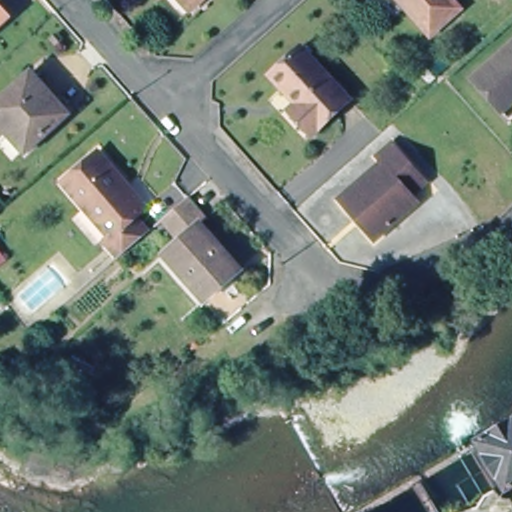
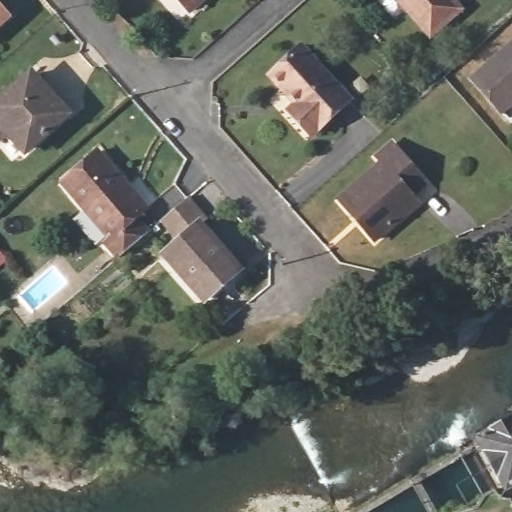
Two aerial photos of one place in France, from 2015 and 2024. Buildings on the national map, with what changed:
unchanged [(178,0),(203,0),(189,13),(178,0)]
unchanged [(398,0),(450,0),(461,13),(431,38),(398,0)]
unchanged [(0,29),(0,10),(9,20),(0,29)]
unchanged [(512,45),(512,105),(502,114),(472,80),(512,45)]
unchanged [(297,106),(271,76),(302,49),(343,94),(351,102),(337,114),(313,136),(297,118),(291,111),(297,106)]
unchanged [(0,130),(0,110),(30,84),(65,124),(26,159),(0,130)]
unchanged [(378,155),(393,144),(426,183),(412,194),(419,203),(375,240),(341,203),(385,164),(378,155)]
unchanged [(131,219),(144,234),(129,247),(115,259),(102,245),(106,242),(59,188),(95,156),(142,210),(131,219)]
unchanged [(189,241),(170,219),(187,204),(207,225),(204,229),(242,273),(205,304),(167,258),(189,241)]
unchanged [(66,280),(34,310),(20,295),(53,265),(66,280)]
unchanged [(512,494),(510,495),(479,446),(512,425),(512,494)]

